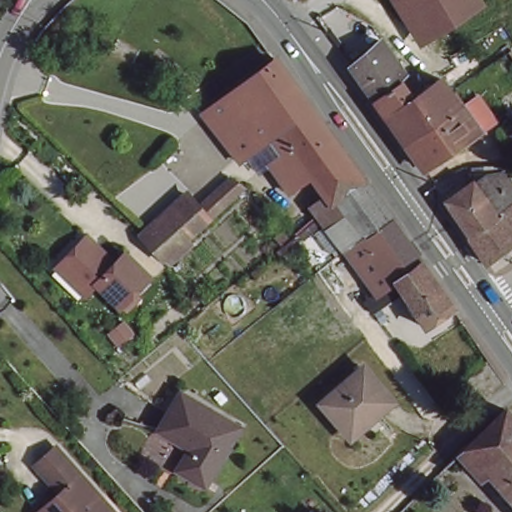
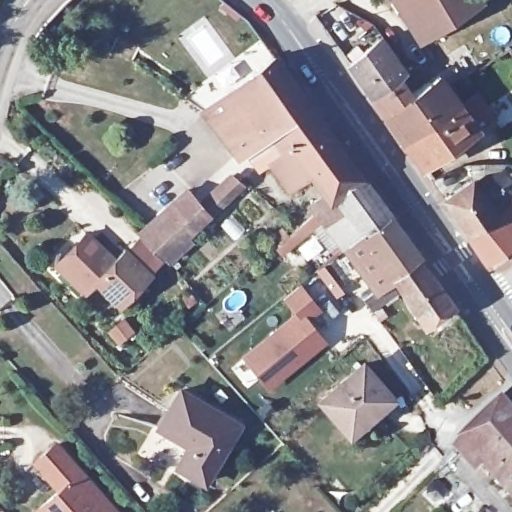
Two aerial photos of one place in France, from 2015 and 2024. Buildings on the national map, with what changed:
unchanged [(392,0),(473,0),(427,27),(415,34),(392,0)]
unchanged [(462,96),(475,86),(494,114),(419,166),(343,65),(375,41),(407,87),(432,70),(462,96)]
unchanged [(215,108),(275,64),(290,85),(292,88),(316,122),(323,132),(362,185),(387,221),(388,221),(418,264),(420,265),(452,309),(453,311),(425,331),(390,282),(376,292),(387,311),(373,322),(367,313),(359,303),(372,295),(362,282),(340,255),(332,244),(325,235),(322,231),(315,224),(307,214),(320,202),(305,185),(285,198),(260,175),(267,167),(257,150),(252,155),(250,157),(229,128),(215,108)]
unchanged [(200,118),(205,114),(211,109),(212,109),(228,129),(250,157),(236,167),(200,118)]
unchanged [(180,164),(170,152),(183,142),(192,154),(180,164)]
unchanged [(165,266),(132,235),(178,191),(192,204),(220,176),(240,190),(165,266)]
unchanged [(484,268),(464,240),(438,203),(460,187),(463,191),(482,181),(512,179),(512,245),(484,268)]
unchanged [(51,268),(60,258),(60,257),(86,231),(113,258),(124,248),(148,272),(118,302),(95,279),(87,286),(86,285),(77,294),(51,268)]
new [(325,343),(267,390),(240,355),(293,312),(282,297),(300,283),(321,311),(310,320),(325,343)]
unchanged [(351,435),(322,401),(360,365),(387,393),(365,412),(370,418),(351,435)]
unchanged [(196,456),(162,435),(183,398),(238,433),(210,490),(185,478),(196,456)]
unchanged [(460,452),(480,433),(499,412),(512,427),(512,512),(507,506),(460,452)]
unchanged [(35,462),(54,445),(115,512),(36,512),(58,492),(35,462)]
unchanged [(162,512),(147,512),(155,504),(162,512)]

